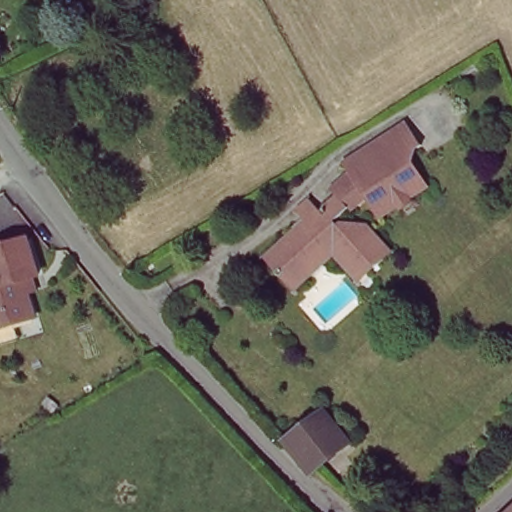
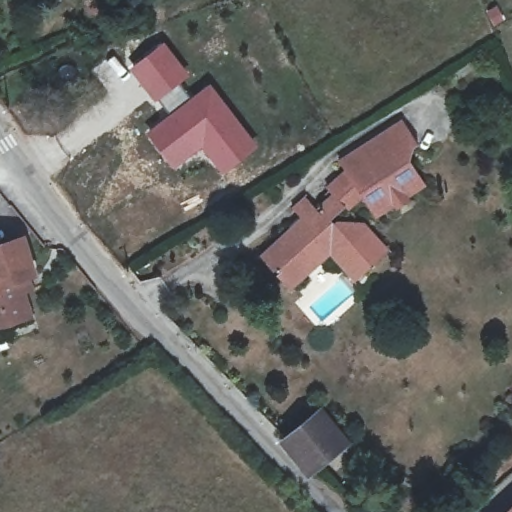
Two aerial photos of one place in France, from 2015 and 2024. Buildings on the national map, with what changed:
new [(164,40),(191,74),(180,83),(190,95),(169,113),(157,99),(155,101),(129,68),(164,40)]
new [(169,113),(190,95),(210,81),(261,146),(224,175),(201,149),(175,169),(146,132),(169,113)]
unchanged [(257,247),(339,171),(335,157),(393,119),(421,142),(408,152),(430,183),(362,220),(387,248),(349,281),(330,257),(289,287),(257,247)]
unchanged [(28,269),(20,271),(24,283),(16,286),(24,310),(0,318),(0,238),(16,233),(28,269)]
unchanged [(279,438),(315,411),(341,445),(308,468),(279,438)]
unchanged [(500,512),(512,501),(512,512),(500,512)]

